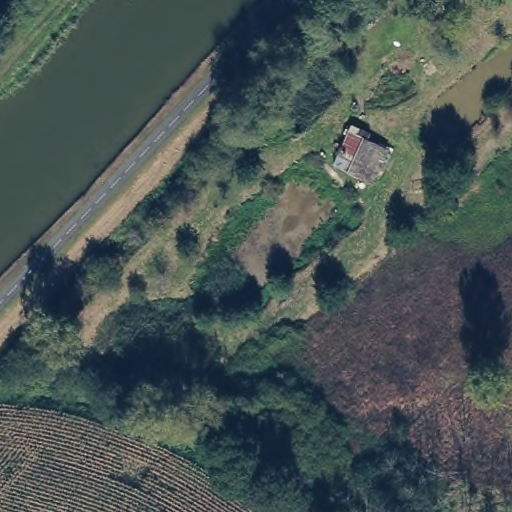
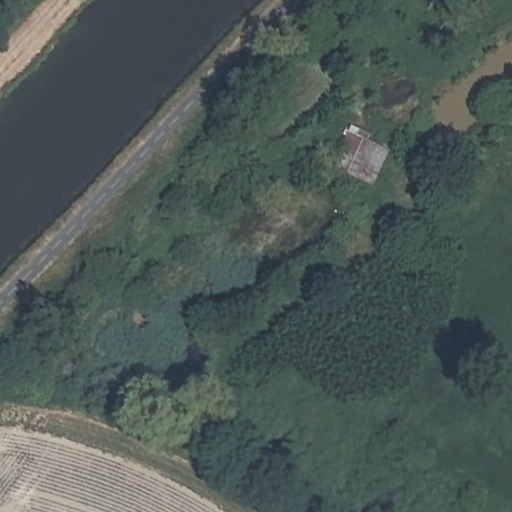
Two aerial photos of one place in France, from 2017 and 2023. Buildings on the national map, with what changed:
unchanged [(392,148),(368,201),(345,189),(351,177),(335,168),(351,129),(392,148)]

